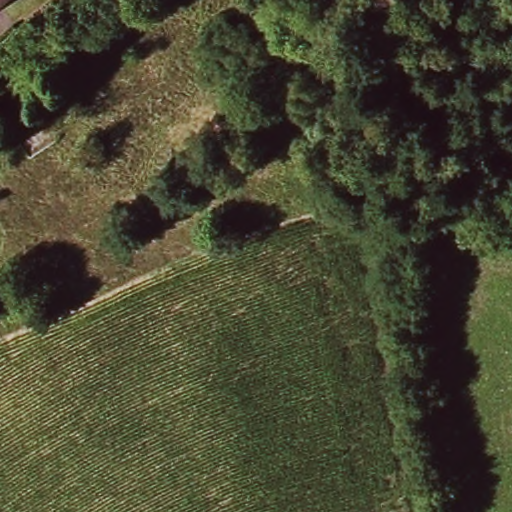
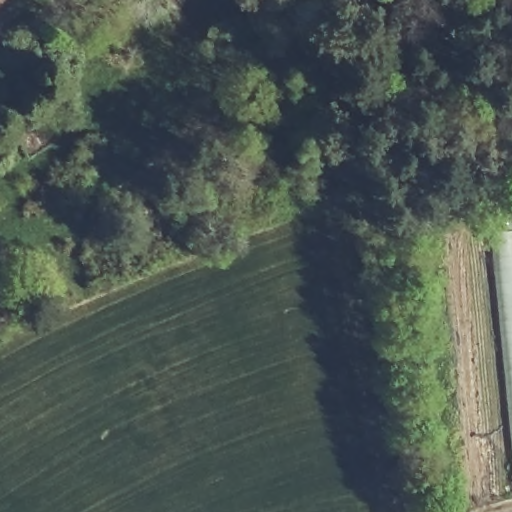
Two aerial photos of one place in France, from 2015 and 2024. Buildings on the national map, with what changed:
new [(490,234),(512,231),(512,485),(490,234)]

